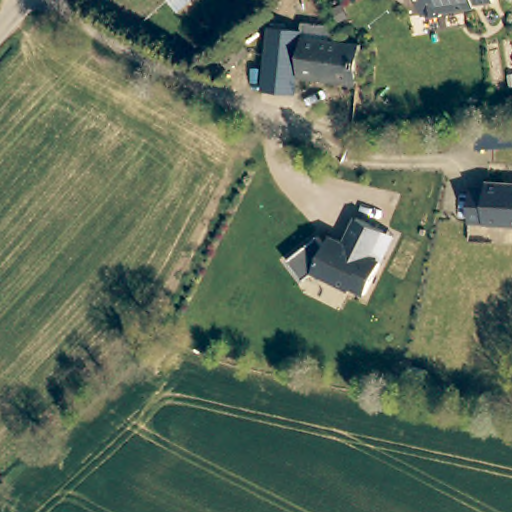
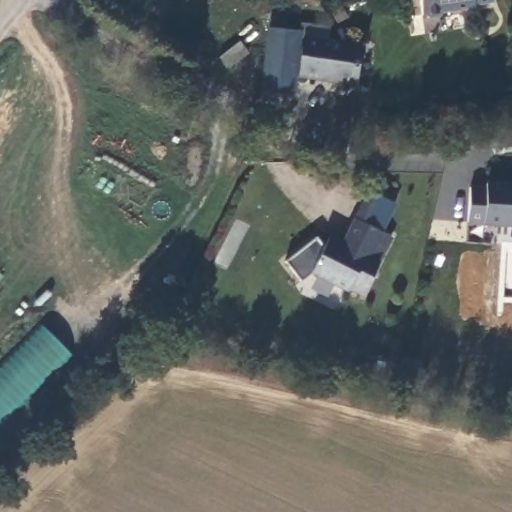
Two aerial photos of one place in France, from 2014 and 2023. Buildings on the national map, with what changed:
unchanged [(475,7),(444,11),(438,17),(427,17),(427,15),(421,15),(419,0),(493,0),(474,2),(475,7)]
unchanged [(294,97),(262,93),(271,29),(302,32),(294,97)]
unchanged [(305,39),(343,43),(360,46),(355,82),(300,75),(305,39)]
unchanged [(252,52),(228,70),(220,59),(245,42),(252,52)]
unchanged [(472,195),(488,196),(488,191),(512,192),(512,233),(470,231),(472,195)]
unchanged [(367,197),(392,210),(365,260),(375,266),(357,297),(343,288),(342,292),(308,272),(296,282),(280,261),(312,237),(320,245),(325,237),(333,242),(338,245),(367,197)]
new [(0,366),(42,322),(75,357),(0,429),(0,366)]

